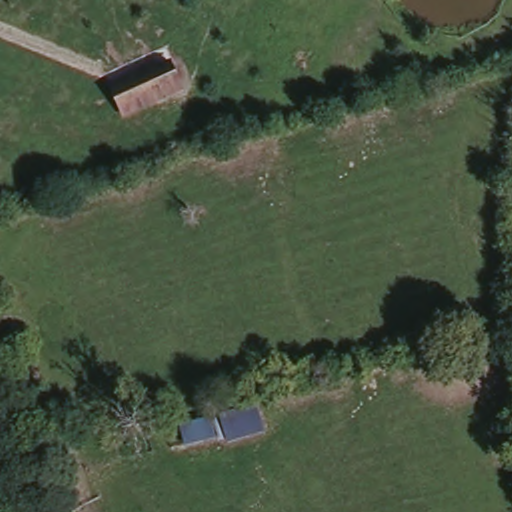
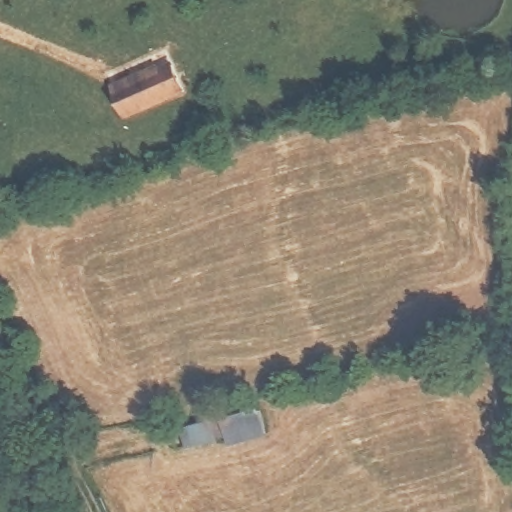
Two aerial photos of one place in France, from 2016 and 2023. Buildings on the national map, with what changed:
unchanged [(160,57),(163,61),(175,56),(190,88),(127,117),(112,79),(160,57)]
unchanged [(219,421),(257,410),(265,437),(227,446),(219,421)]
unchanged [(177,429),(210,421),(216,443),(184,451),(177,429)]

